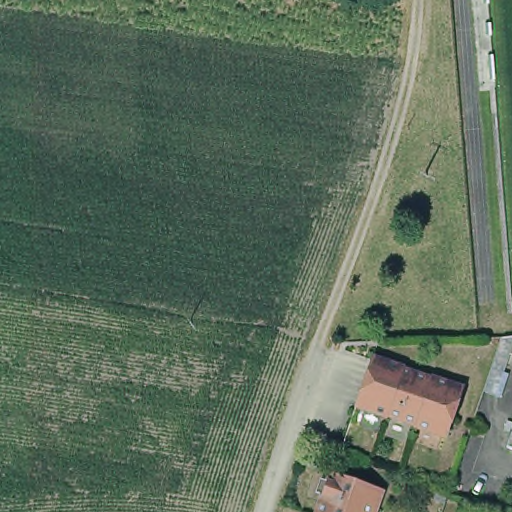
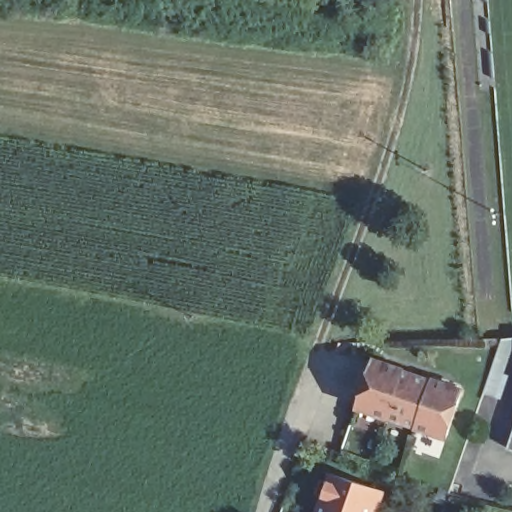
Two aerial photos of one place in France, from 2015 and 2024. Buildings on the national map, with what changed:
unchanged [(425,375),(457,386),(440,433),(410,422),(410,421),(382,411),(381,412),(350,401),(360,372),(367,355),(397,365),(396,366),(425,376),(425,375)]
unchanged [(501,443),(512,411),(512,447),(501,443)]
unchanged [(328,505),(324,504),(335,473),(382,490),(374,512),(326,512),(328,505)]
unchanged [(444,505),(434,501),(439,490),(448,493),(444,505)]

